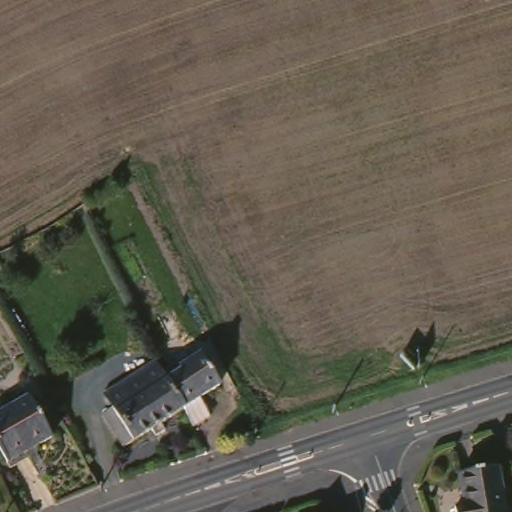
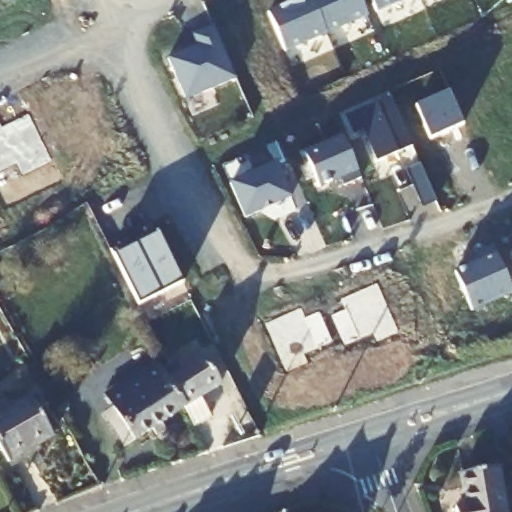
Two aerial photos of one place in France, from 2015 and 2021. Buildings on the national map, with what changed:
new [(292,4),(290,0),(311,0),(326,34),(285,52),(268,14),(292,4)]
new [(367,16),(326,34),(311,0),(360,0),(367,16)]
new [(376,12),(371,0),(404,0),(376,12)]
new [(198,46),(194,36),(214,28),(237,79),(186,102),(168,60),(198,46)]
new [(448,93),(463,127),(431,141),(416,107),(448,93)]
new [(391,97),(412,147),(377,163),(363,132),(353,136),(345,117),(391,97)]
new [(343,137),(361,179),(333,191),(330,183),(308,192),(293,159),(343,137)]
new [(277,163),(291,198),(277,205),(275,201),(258,208),(260,212),(246,218),(230,183),(277,163)]
new [(156,228),(183,283),(137,306),(110,252),(156,228)]
new [(478,260),(476,253),(492,246),(512,291),(471,309),(454,271),(478,260)]
unchanged [(87,357),(97,351),(102,361),(92,366),(87,357)]
unchanged [(175,372),(183,367),(190,362),(195,369),(215,356),(235,384),(199,408),(175,372)]
unchanged [(139,447),(115,411),(125,403),(120,395),(169,363),(175,372),(199,408),(139,447)]
unchanged [(0,415),(34,394),(57,434),(15,459),(0,434),(0,415)]
unchanged [(504,464),(511,512),(461,512),(460,504),(468,503),(463,470),(504,464)]

